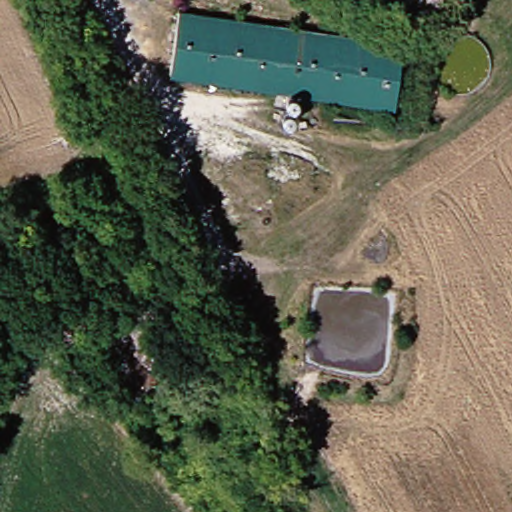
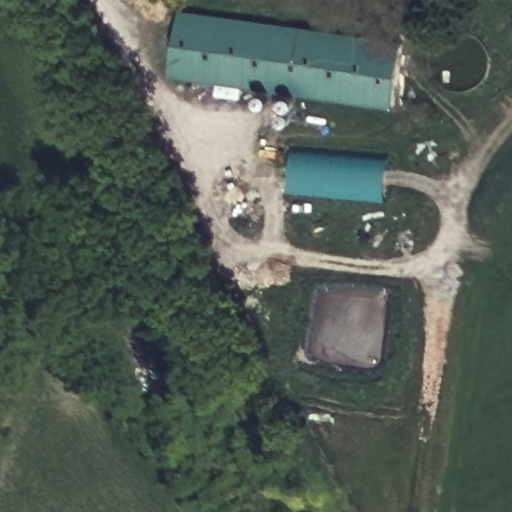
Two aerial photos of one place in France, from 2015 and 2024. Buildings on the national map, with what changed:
unchanged [(413,42),(405,106),(178,79),(187,15),(413,42)]
new [(292,192),(294,149),(395,158),(390,200),(292,192)]

